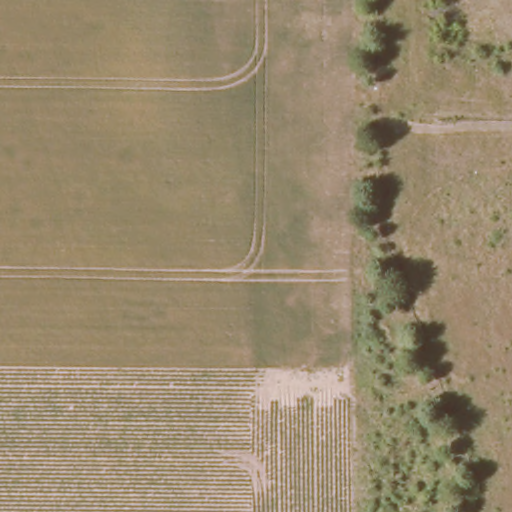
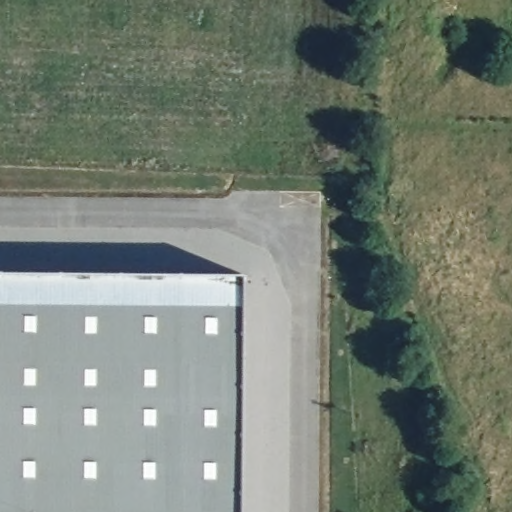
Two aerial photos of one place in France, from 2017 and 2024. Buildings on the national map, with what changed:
new [(247,512),(0,512),(0,277),(249,280),(247,512)]

